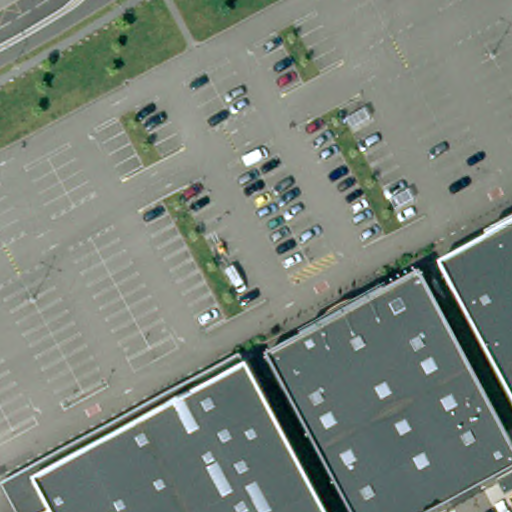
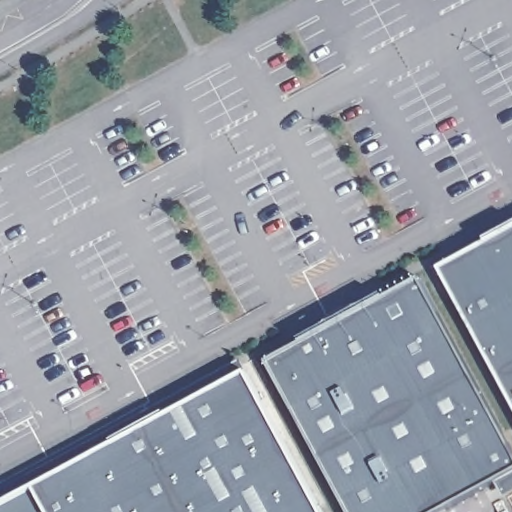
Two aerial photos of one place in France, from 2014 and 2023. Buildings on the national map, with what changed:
unchanged [(512,231),(512,399),(441,268),(512,231)]
unchanged [(512,446),(512,472),(440,512),(349,512),(269,363),(417,281),(512,446)]
unchanged [(240,360),(249,374),(322,512),(16,512),(4,490),(240,360)]

